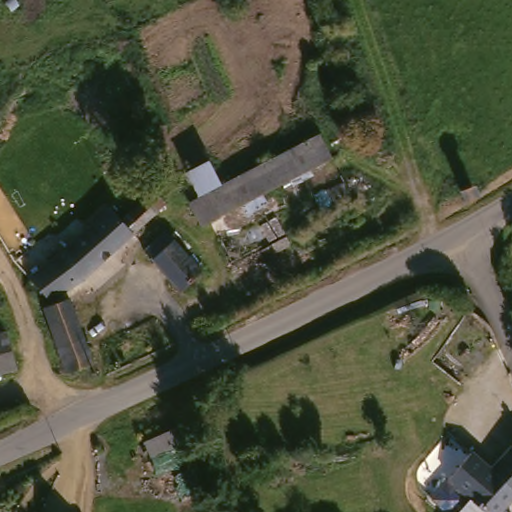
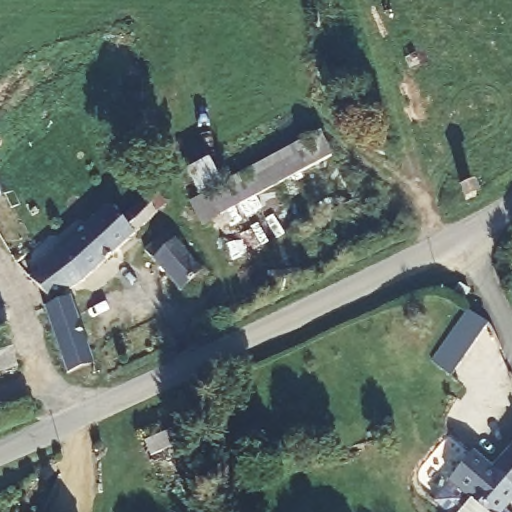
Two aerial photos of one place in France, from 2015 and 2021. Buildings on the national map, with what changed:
unchanged [(338,156),(208,224),(195,200),(326,131),(338,156)]
unchanged [(117,204),(120,208),(125,214),(148,195),(156,204),(158,207),(159,208),(93,269),(55,296),(40,273),(117,204)]
unchanged [(171,223),(206,267),(184,286),(151,243),(171,223)]
unchanged [(98,361),(72,369),(54,314),(50,303),(57,300),(58,300),(77,294),(98,361)]
new [(468,312),(484,320),(459,352),(463,356),(449,375),(430,359),(444,341),(468,312)]
unchanged [(22,363),(0,370),(0,332),(12,328),(22,363)]
unchanged [(191,418),(197,433),(154,449),(148,434),(191,418)]
unchanged [(505,447),(512,438),(512,478),(493,461),(505,447)]
unchanged [(512,478),(512,497),(500,512),(497,512),(474,494),(469,489),(493,461),(512,478)]
unchanged [(474,494),(497,512),(459,512),(474,494)]

